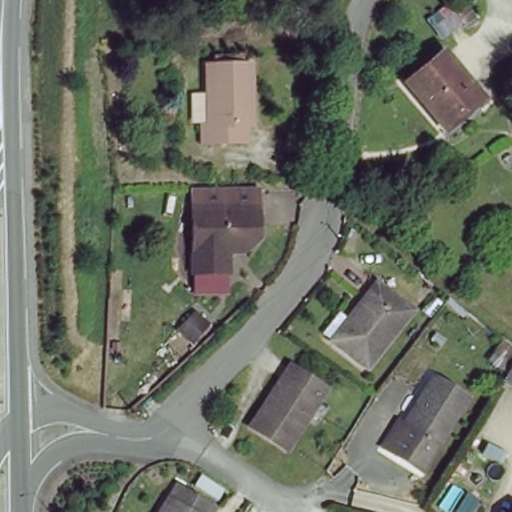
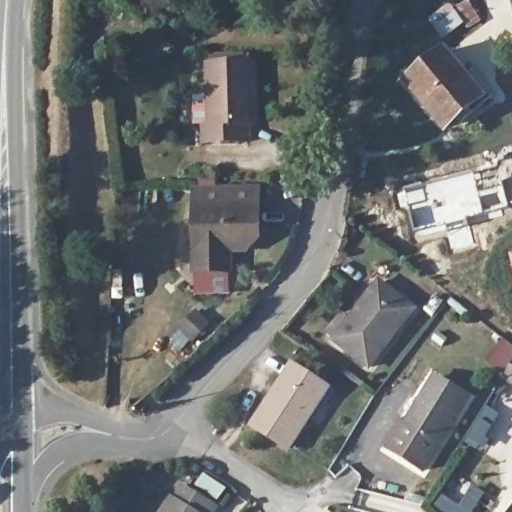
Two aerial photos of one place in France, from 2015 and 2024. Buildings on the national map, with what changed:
unchanged [(445,128),(404,77),(443,46),(484,97),(445,128)]
unchanged [(247,121),(247,138),(203,139),(203,121),(208,121),(207,63),(253,61),(253,121),(247,121)]
new [(475,169),(480,194),(502,187),(508,212),(500,214),(500,211),(413,233),(401,186),(475,169)]
unchanged [(255,203),(257,224),(253,233),(245,243),(224,242),(225,267),(192,267),(190,201),(249,202),(255,203)]
new [(470,224),(475,245),(451,251),(446,231),(470,224)]
new [(507,251),(512,250),(512,272),(507,251)]
unchanged [(348,310),(358,317),(383,282),(418,310),(375,367),(340,341),(330,334),(348,310)]
new [(488,358),(503,338),(512,346),(512,387),(503,381),(508,375),(488,358)]
unchanged [(285,449),(249,425),(286,363),(322,386),(285,449)]
unchanged [(421,466),(379,439),(397,412),(404,417),(435,369),(470,391),(421,466)]
unchanged [(216,507),(212,512),(163,512),(181,484),(216,507)]

